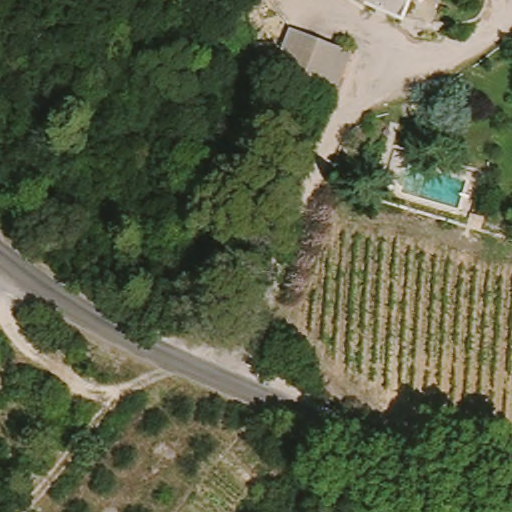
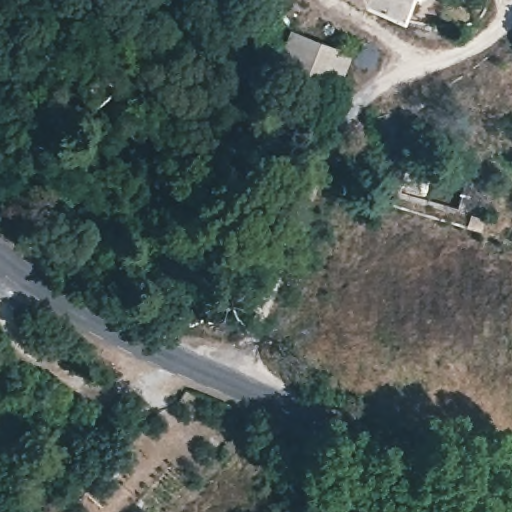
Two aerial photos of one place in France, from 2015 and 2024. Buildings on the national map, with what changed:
unchanged [(358,0),(395,0),(385,17),(358,0)]
unchanged [(312,111),(270,91),(268,86),(286,37),(329,56),(332,60),(312,111)]

